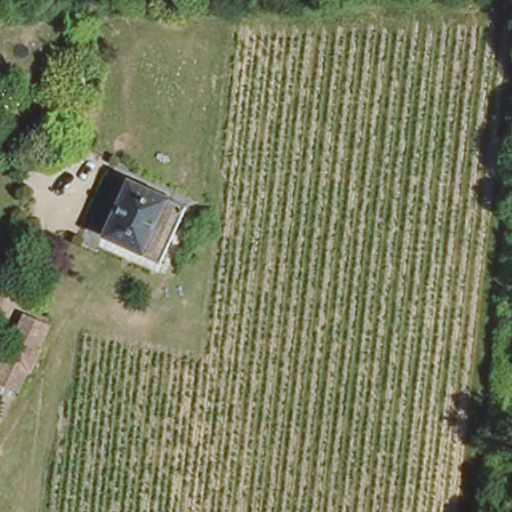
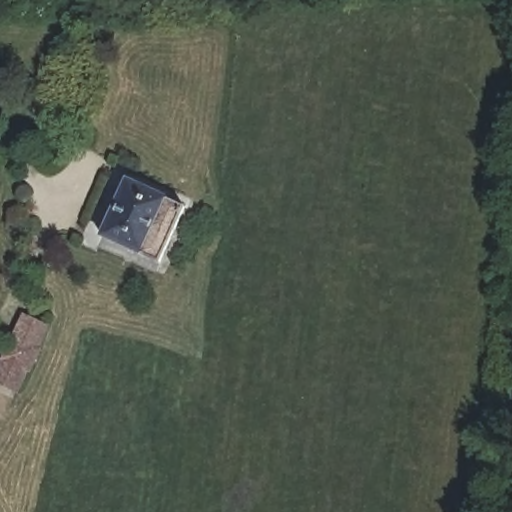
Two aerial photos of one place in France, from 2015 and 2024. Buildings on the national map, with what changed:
unchanged [(98,235),(121,180),(186,210),(163,264),(98,235)]
unchanged [(30,394),(21,415),(0,406),(0,402),(26,342),(49,352),(39,374),(41,375),(33,394),(30,394)]

